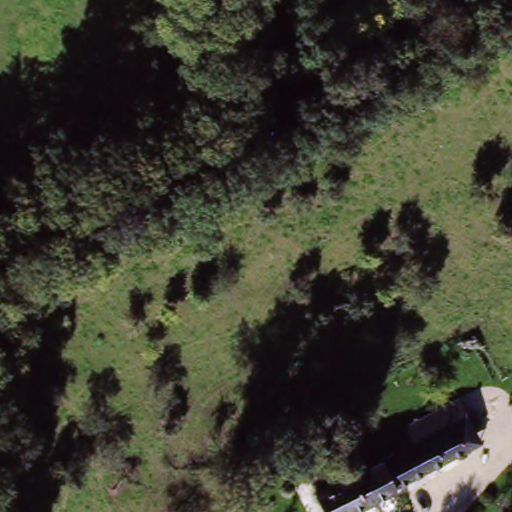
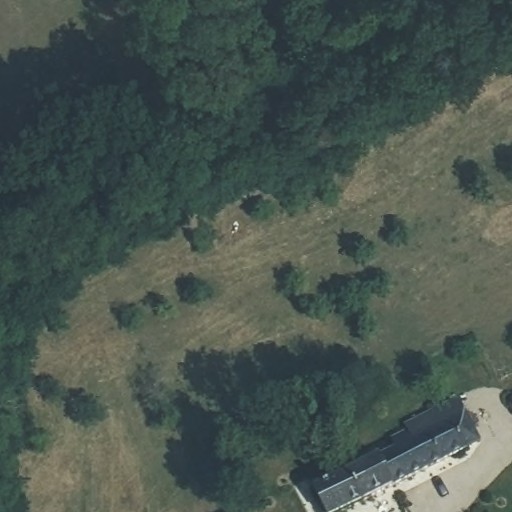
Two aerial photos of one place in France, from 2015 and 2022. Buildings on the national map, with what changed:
unchanged [(396,444),(392,433),(409,426),(406,421),(456,397),(478,438),(337,512),(321,512),(309,487),(342,470),(336,457),(368,443),(375,453),(396,444)]

